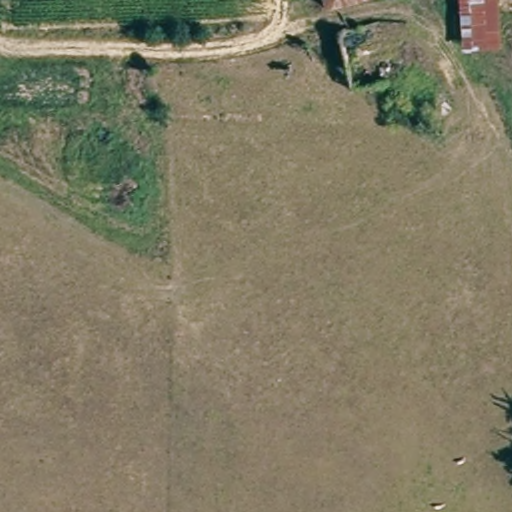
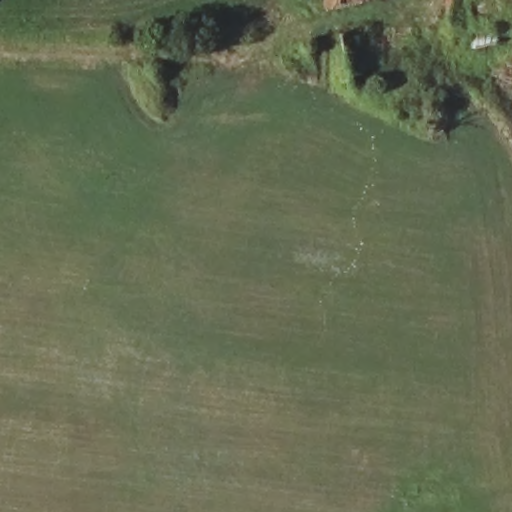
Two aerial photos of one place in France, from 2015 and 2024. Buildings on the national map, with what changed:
unchanged [(332,9),(329,0),(360,0),(332,9)]
demolished [(462,0),(501,0),(504,48),(466,59),(462,0)]

